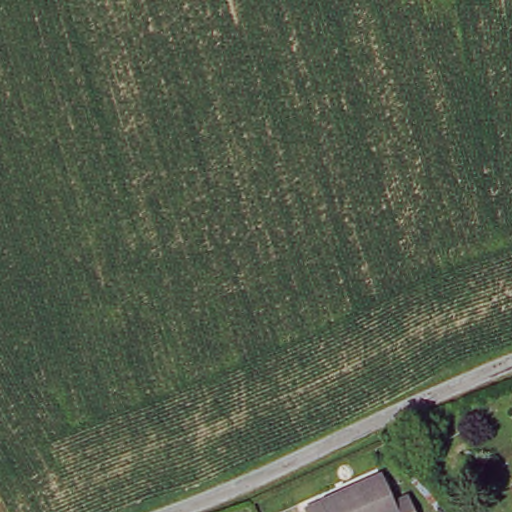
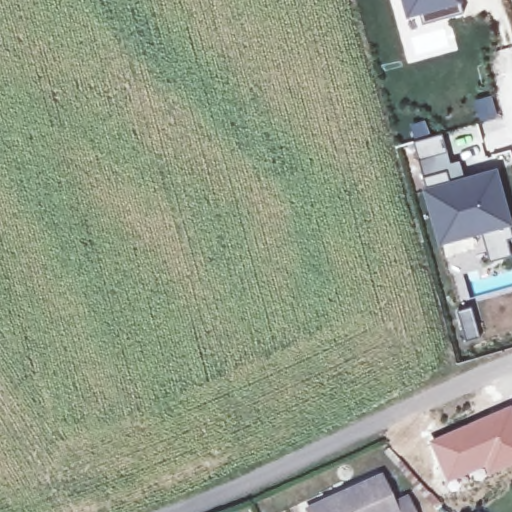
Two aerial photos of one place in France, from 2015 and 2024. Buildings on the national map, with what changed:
new [(436,18),(432,4),(403,11),(401,0),(455,0),(458,12),(436,18)]
new [(435,132),(443,162),(454,160),(458,178),(489,170),(506,237),(501,238),(505,254),(482,260),(474,230),(434,240),(408,139),(435,132)]
new [(510,404),(512,408),(512,465),(485,476),(482,468),(446,483),(427,441),(510,404)]
unchanged [(389,503),(403,495),(414,512),(314,512),(373,477),(389,503)]

